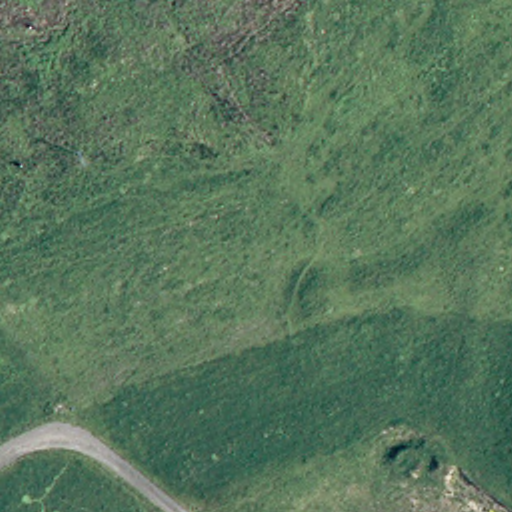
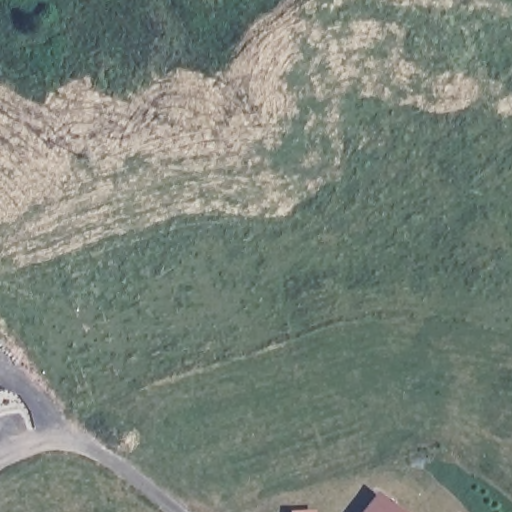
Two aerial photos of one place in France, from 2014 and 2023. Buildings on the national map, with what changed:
new [(403,512),(359,512),(375,491),(403,512)]

